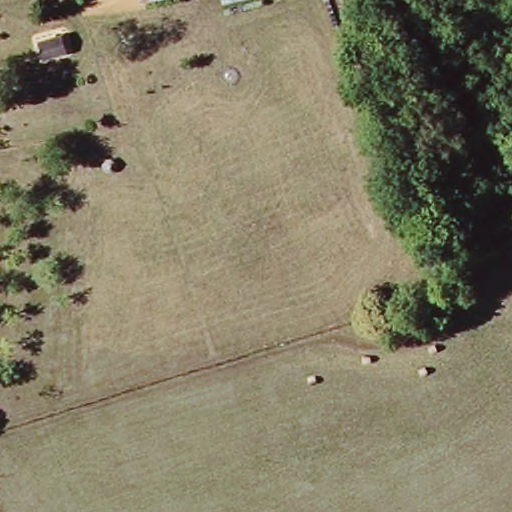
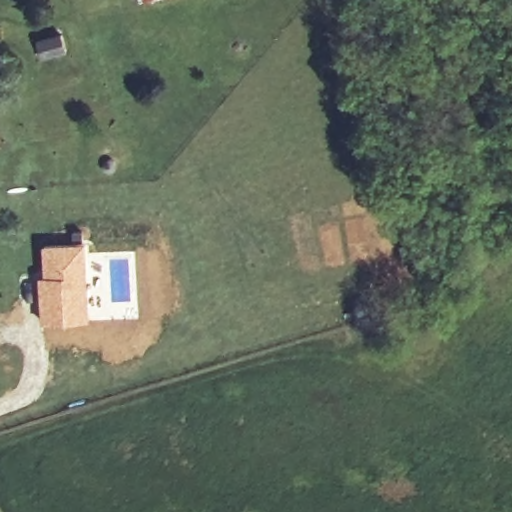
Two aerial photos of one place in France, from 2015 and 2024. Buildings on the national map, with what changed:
unchanged [(145,2),(145,0),(153,0),(145,2)]
unchanged [(65,33),(71,52),(46,58),(41,39),(65,33)]
new [(83,243),(87,320),(47,322),(42,322),(41,275),(45,275),(44,245),(83,243)]

